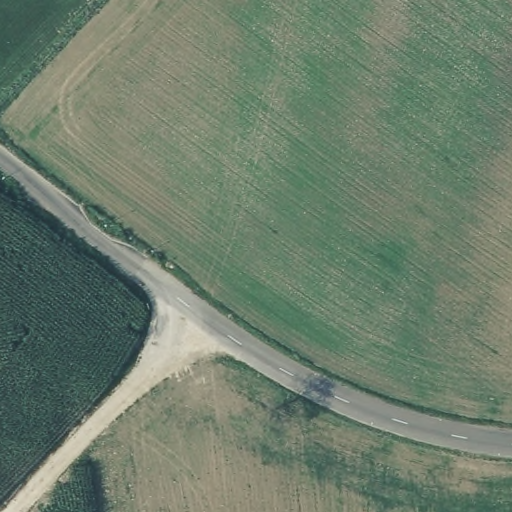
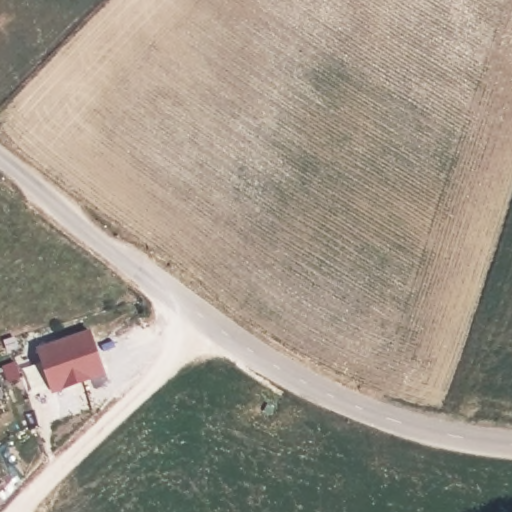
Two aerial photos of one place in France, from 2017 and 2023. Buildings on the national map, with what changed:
new [(79,328),(95,370),(43,389),(28,347),(79,328)]

